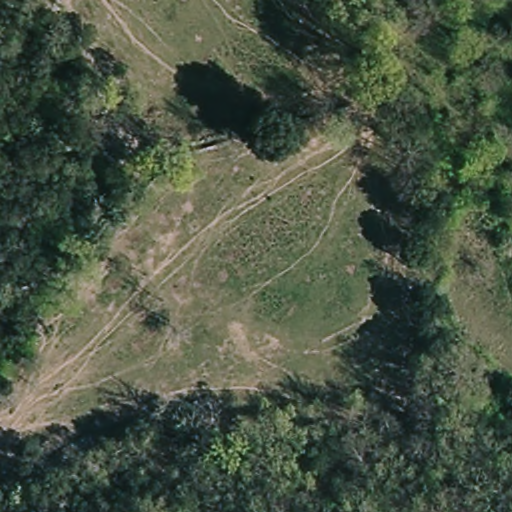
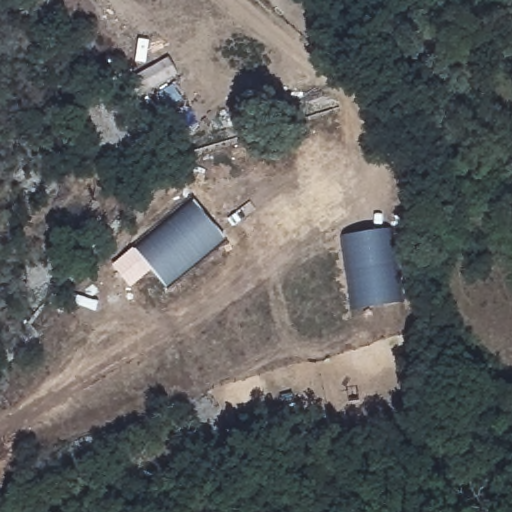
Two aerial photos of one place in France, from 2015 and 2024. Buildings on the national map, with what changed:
new [(194,200),(227,237),(167,288),(135,249),(194,200)]
new [(405,300),(352,308),(340,236),(393,226),(405,300)]

